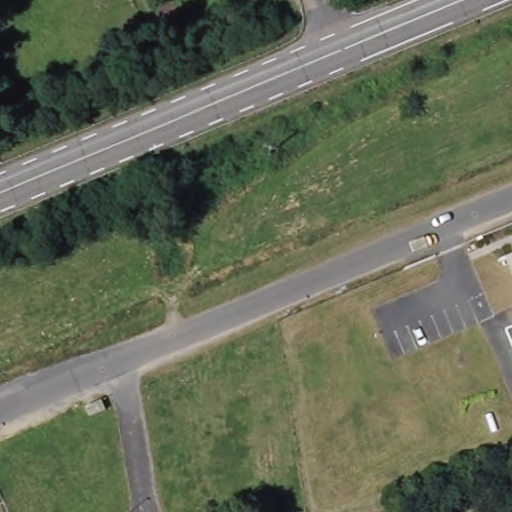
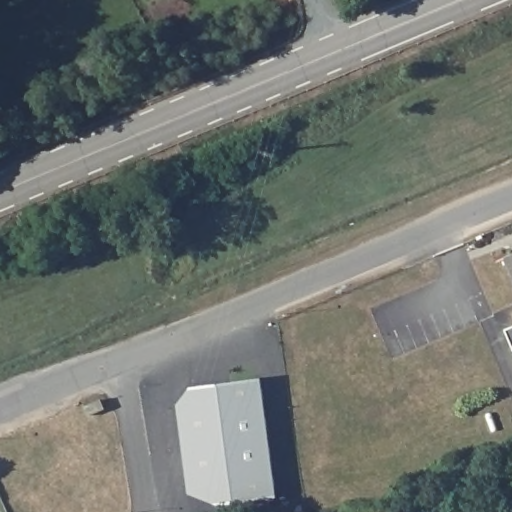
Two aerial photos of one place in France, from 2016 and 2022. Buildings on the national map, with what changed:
unchanged [(506,257),(512,255),(512,273),(506,257)]
unchanged [(506,330),(512,327),(512,346),(506,330)]
new [(192,387),(261,378),(277,497),(221,505),(190,493),(178,404),(192,387)]
unchanged [(101,399),(105,409),(88,416),(84,406),(101,399)]

